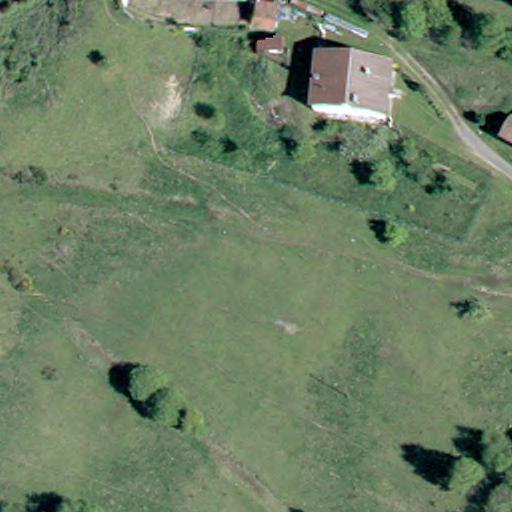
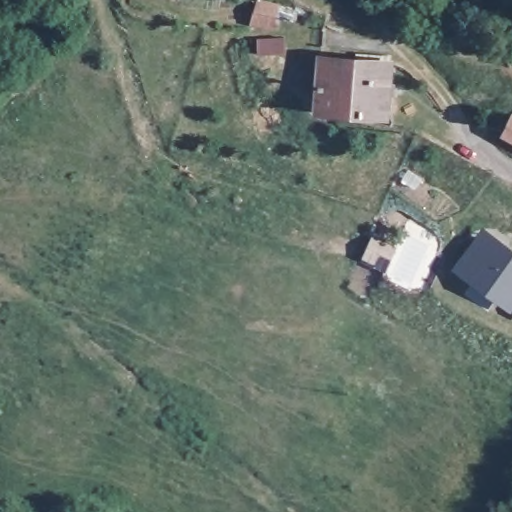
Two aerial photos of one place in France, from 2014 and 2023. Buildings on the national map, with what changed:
unchanged [(214,0),(238,0),(237,18),(213,16),(214,0)]
new [(255,6),(279,8),(277,25),(254,23),(255,6)]
unchanged [(322,61),(365,62),(391,66),(386,120),(319,114),(322,61)]
unchanged [(507,119),(512,121),(512,143),(498,135),(507,119)]
new [(512,249),(512,314),(451,270),(481,229),(512,249)]
new [(371,241),(390,251),(381,269),(362,259),(371,241)]

